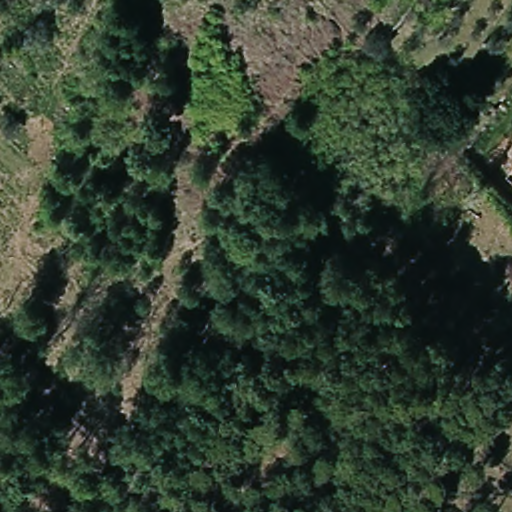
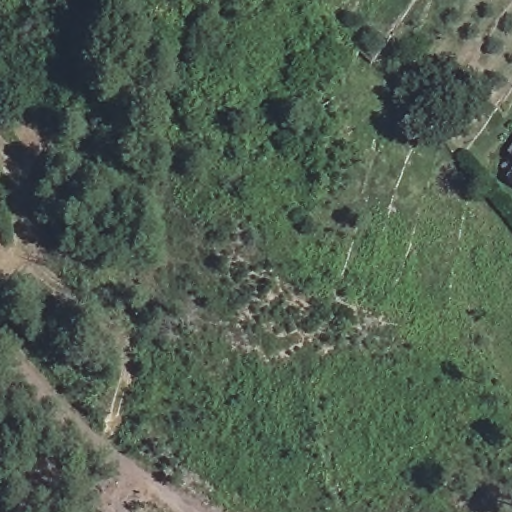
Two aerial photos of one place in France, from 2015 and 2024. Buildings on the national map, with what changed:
unchanged [(512,154),(512,169),(505,164),(512,154)]
unchanged [(512,177),(512,179),(511,178),(512,177)]

